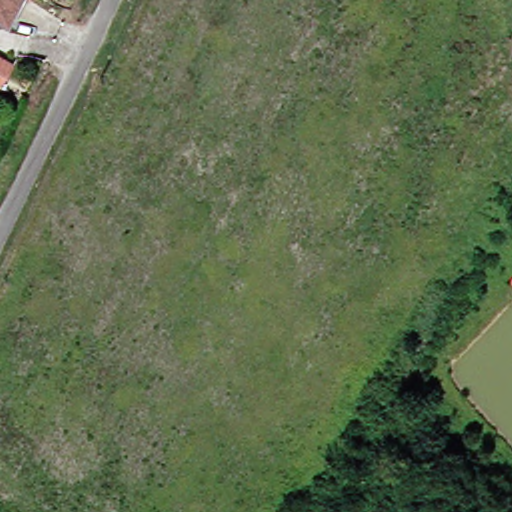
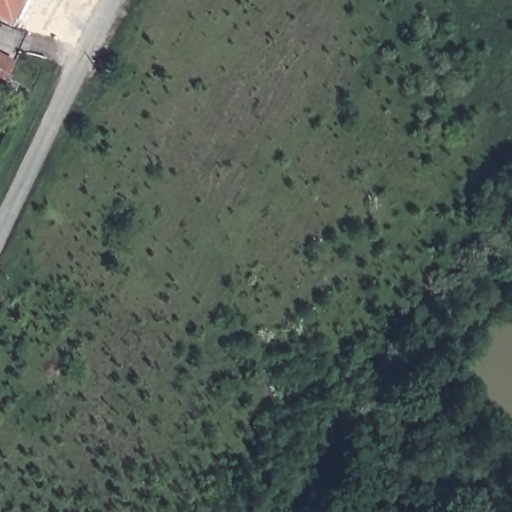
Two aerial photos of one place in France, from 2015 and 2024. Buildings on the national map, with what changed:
unchanged [(1,22),(0,22),(0,0),(12,0),(1,22)]
unchanged [(4,47),(22,55),(12,78),(0,72),(0,55),(4,47)]

